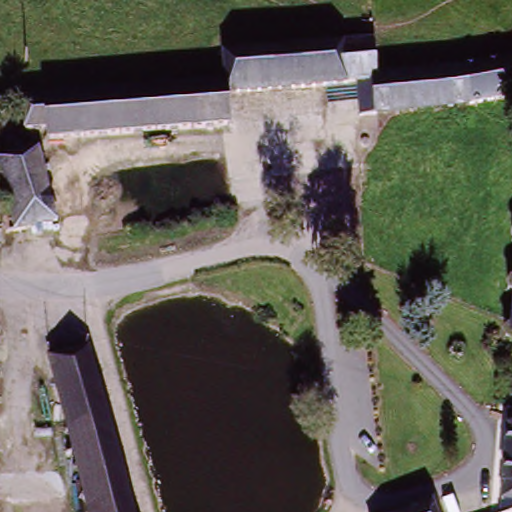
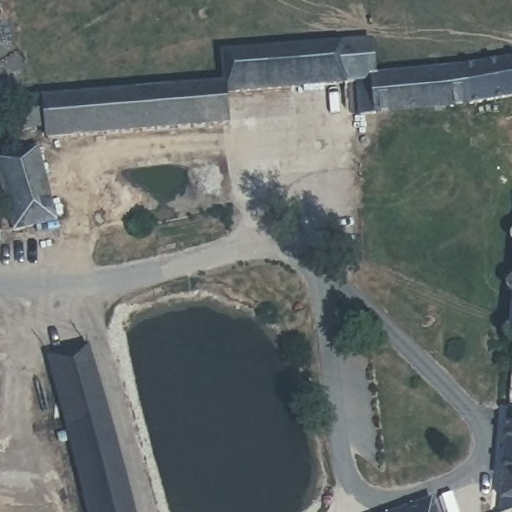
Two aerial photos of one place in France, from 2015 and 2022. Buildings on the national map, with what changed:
unchanged [(376,76),(362,76),(231,86),(228,53),(374,42),(376,76)]
unchanged [(368,116),(362,76),(376,76),(488,67),(512,62),(512,97),(479,106),(368,116)]
unchanged [(231,86),(233,126),(53,141),(51,128),(32,129),(29,102),(231,86)]
unchanged [(38,138),(47,169),(38,171),(51,220),(15,231),(0,176),(0,152),(38,138)]
unchanged [(512,300),(512,342),(507,341),(512,300)]
unchanged [(88,348),(133,512),(86,512),(45,360),(88,348)]
unchanged [(512,412),(512,512),(497,512),(509,411),(512,412)]
unchanged [(437,512),(400,512),(433,500),(437,512)]

